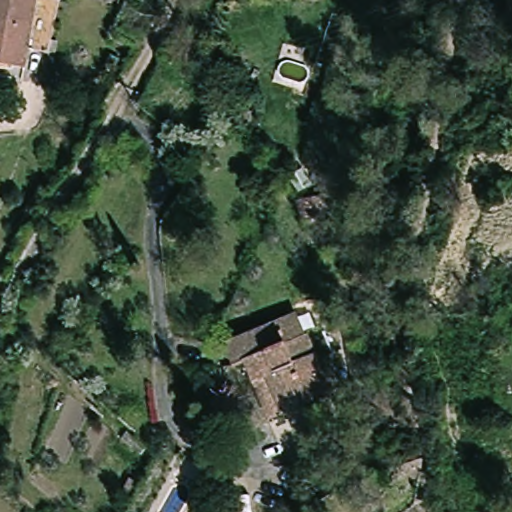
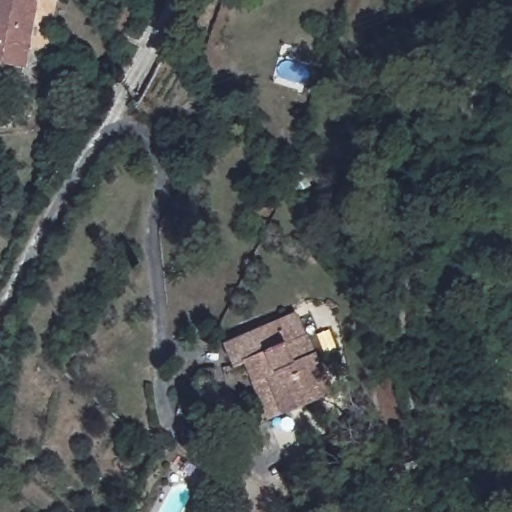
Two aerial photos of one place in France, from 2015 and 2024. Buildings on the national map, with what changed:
unchanged [(61,0),(51,56),(28,52),(26,69),(0,65),(0,0),(60,0),(61,0)]
unchanged [(329,220),(302,226),(297,199),(324,194),(329,220)]
unchanged [(241,364),(232,368),(221,345),(294,313),(305,336),(307,335),(315,353),(321,368),(323,367),(334,392),(283,415),(257,357),(241,364)]
unchanged [(268,422),(241,364),(257,357),(283,415),(268,422)]

